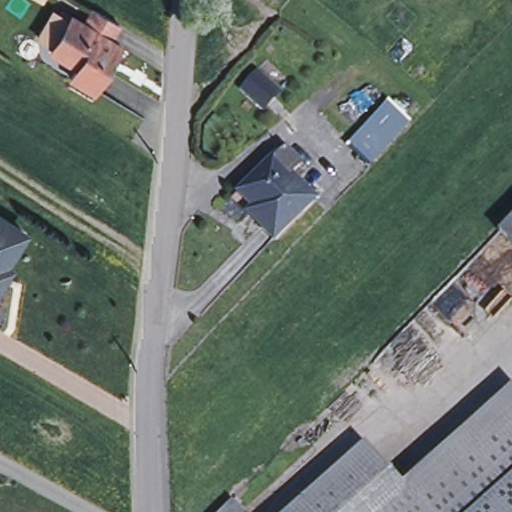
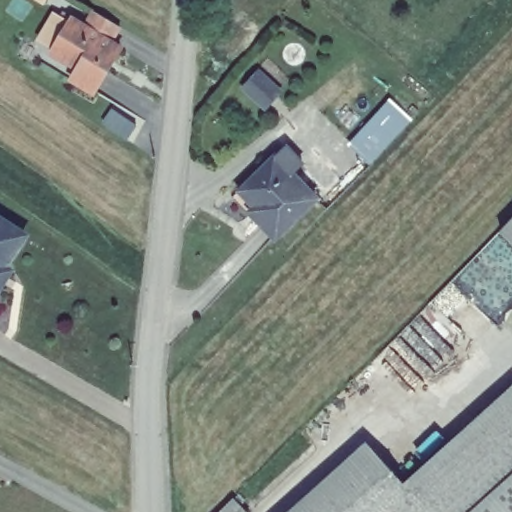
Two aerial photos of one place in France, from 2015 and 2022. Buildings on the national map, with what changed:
unchanged [(66,17),(79,24),(88,10),(114,26),(105,40),(116,47),(89,92),(68,79),(74,68),(46,51),(66,17)]
unchanged [(254,71),(274,88),(260,103),(241,87),(254,71)]
unchanged [(408,118),(366,161),(348,143),(389,100),(408,118)]
unchanged [(279,241),(263,225),(268,220),(243,195),(278,160),(289,150),(304,166),(294,176),(319,201),(279,241)]
unchanged [(3,263),(8,267),(0,279),(0,220),(21,234),(3,263)]
unchanged [(509,235),(512,231),(512,238),(509,235)]
unchanged [(471,512),(420,512),(401,490),(512,391),(512,476),(471,512)]
unchanged [(401,490),(420,512),(297,512),(366,451),(401,490)]
unchanged [(471,512),(512,476),(512,512),(471,512)]
unchanged [(222,512),(234,499),(246,512),(222,512)]

